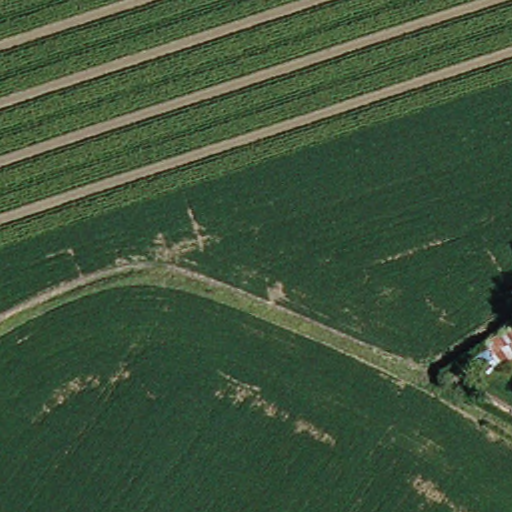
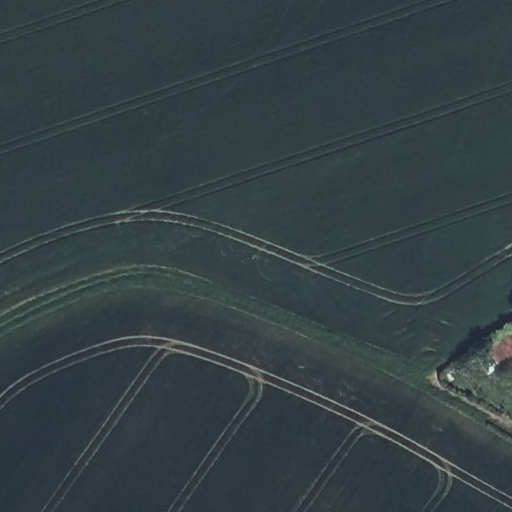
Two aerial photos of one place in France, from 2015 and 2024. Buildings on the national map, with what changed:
unchanged [(512,326),(512,362),(496,372),(480,349),(512,326)]

